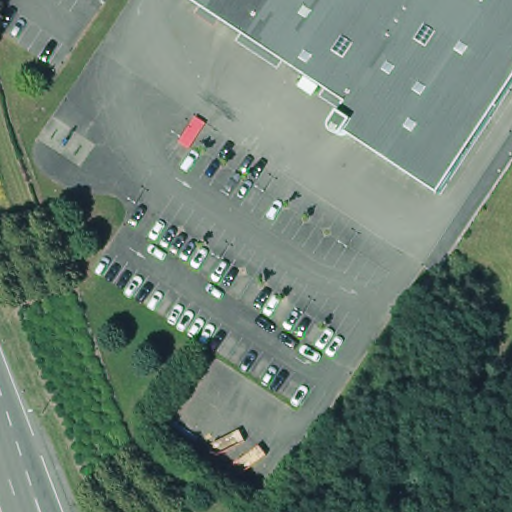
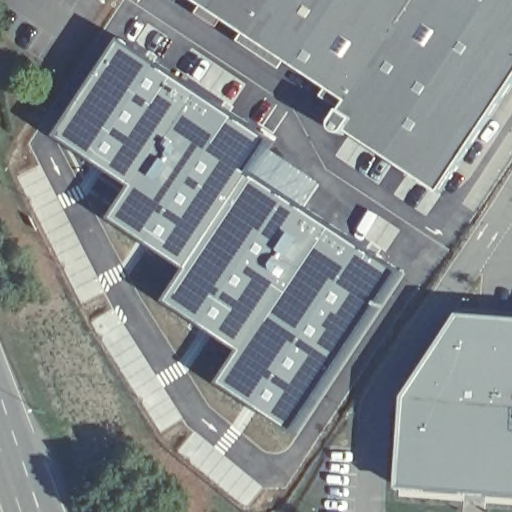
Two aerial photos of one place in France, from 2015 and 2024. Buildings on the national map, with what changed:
unchanged [(437,191),(345,130),(339,133),(332,130),(330,125),(331,119),(344,100),(192,0),(512,0),(512,78),(437,191)]
new [(121,40),(272,141),(268,147),(250,172),(305,208),(397,269),(390,282),(388,285),(322,386),(291,431),(218,383),(239,351),(165,302),(186,269),(111,220),(132,187),(56,135),(121,40)]
new [(268,147),(321,183),(305,208),(250,172),(268,147)]
new [(369,209),(400,229),(385,251),(355,231),(369,209)]
new [(402,488),(409,401),(464,317),(512,320),(512,496),(402,488)]

